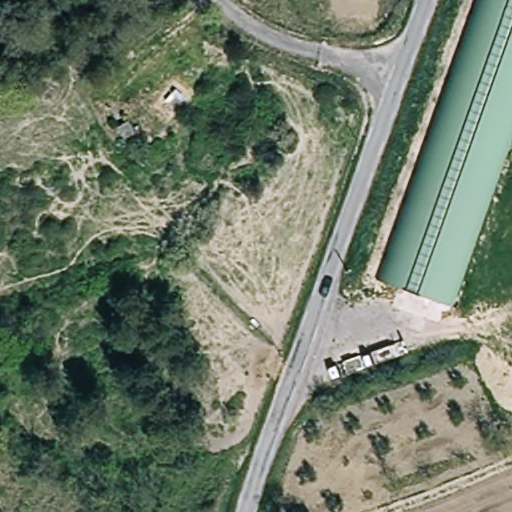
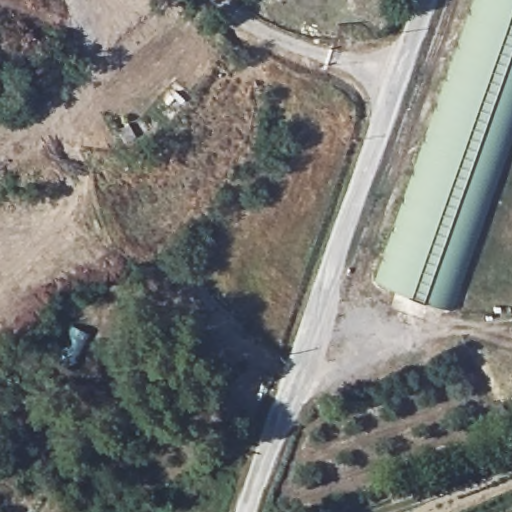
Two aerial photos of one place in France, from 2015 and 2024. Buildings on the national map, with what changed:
unchanged [(371,283),(470,0),(512,0),(512,113),(499,152),(462,258),(445,309),(371,283)]

